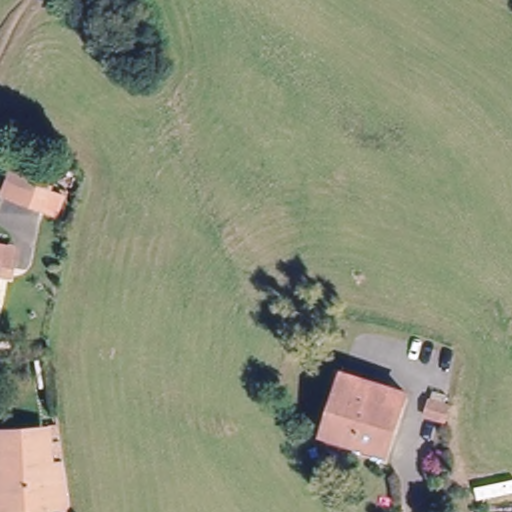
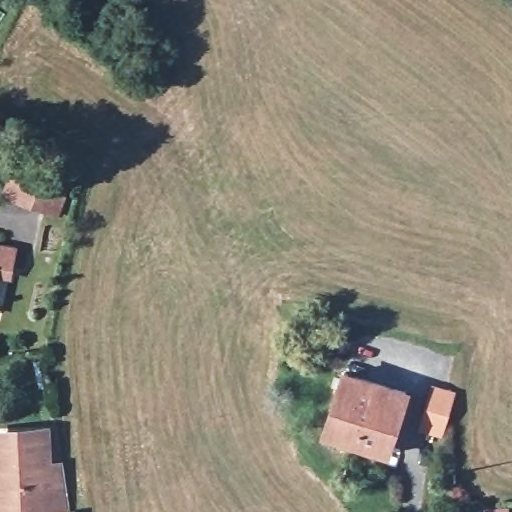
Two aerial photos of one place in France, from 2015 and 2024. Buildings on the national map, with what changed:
unchanged [(52,177),(40,207),(8,195),(20,165),(52,177)]
unchanged [(3,254),(0,271),(0,253),(3,254)]
unchanged [(391,453),(327,431),(347,377),(410,402),(391,453)]
unchanged [(436,403),(454,410),(450,422),(449,426),(431,418),(436,403)]
unchanged [(3,511),(3,512),(0,512),(0,502),(2,502),(0,486),(0,435),(43,431),(47,462),(65,462),(70,491),(72,503),(50,506),(3,511)]

